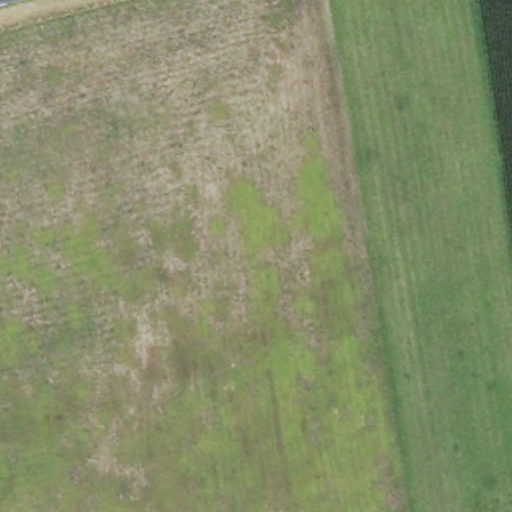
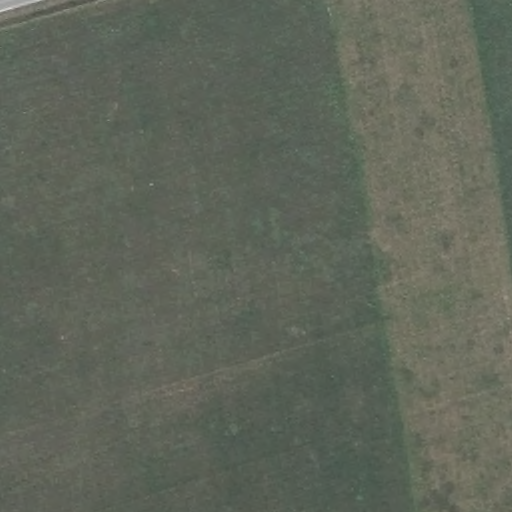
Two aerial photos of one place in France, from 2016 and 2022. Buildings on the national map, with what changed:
[]

